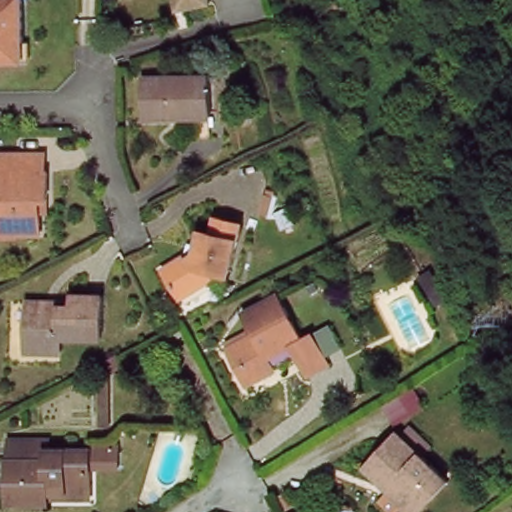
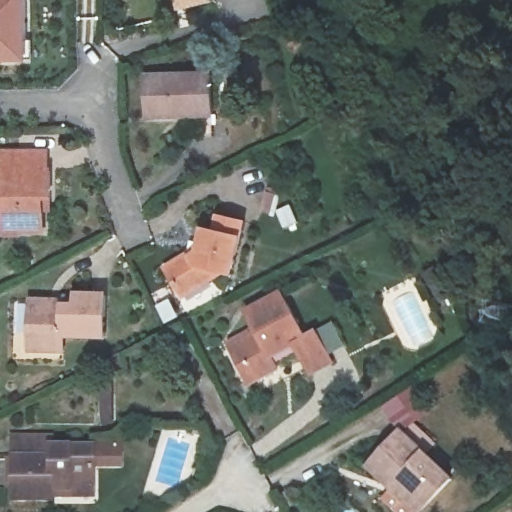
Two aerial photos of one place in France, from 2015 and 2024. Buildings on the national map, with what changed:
unchanged [(27,0),(29,62),(0,63),(0,0),(27,0)]
unchanged [(183,8),(181,0),(208,0),(209,2),(183,8)]
unchanged [(152,110),(151,71),(214,68),(215,108),(152,110)]
unchanged [(25,235),(25,224),(5,223),(6,173),(1,173),(1,154),(47,155),(47,174),(53,175),(52,200),(52,235),(25,235)]
unchanged [(197,254),(199,259),(208,253),(213,232),(222,234),(228,219),(250,229),(235,275),(220,272),(215,282),(186,294),(175,265),(197,254)]
unchanged [(36,342),(38,298),(59,299),(59,304),(84,305),(84,294),(112,295),(110,337),(69,335),(68,350),(51,349),(36,349),(36,342)]
unchanged [(252,381),(246,371),(239,374),(228,352),(255,339),(245,316),(284,298),(305,340),(312,337),(328,369),(307,381),(297,359),(272,371),(252,381)]
unchanged [(390,499),(398,490),(374,464),(405,430),(456,478),(433,502),(424,512),(404,512),(390,499)]
unchanged [(56,491),(55,501),(18,502),(17,459),(54,459),(53,449),(96,449),(98,490),(56,491)]

